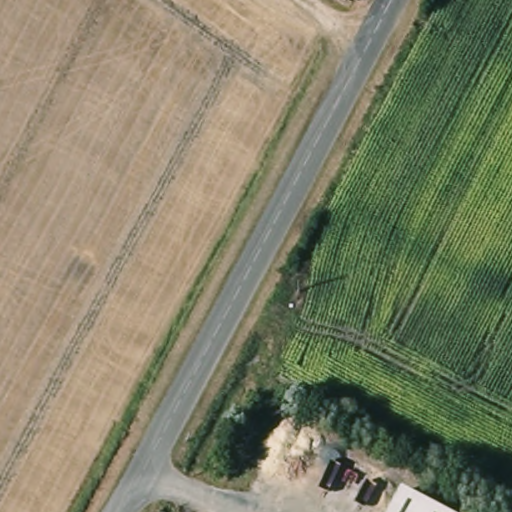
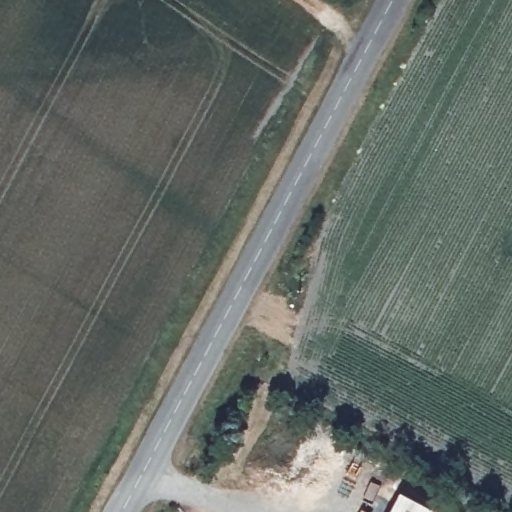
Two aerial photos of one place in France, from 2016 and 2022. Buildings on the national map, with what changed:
unchanged [(397,493),(435,512),(387,512),(397,493)]

